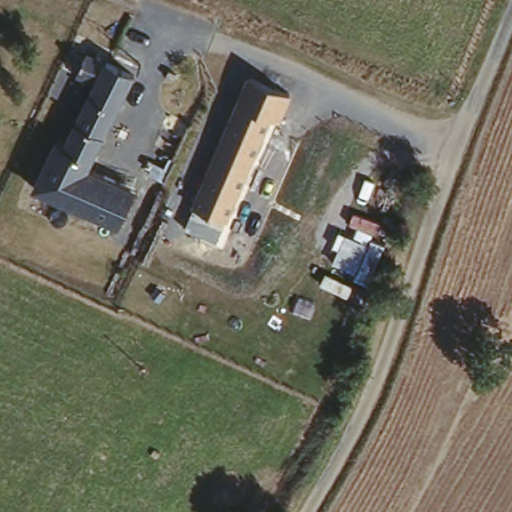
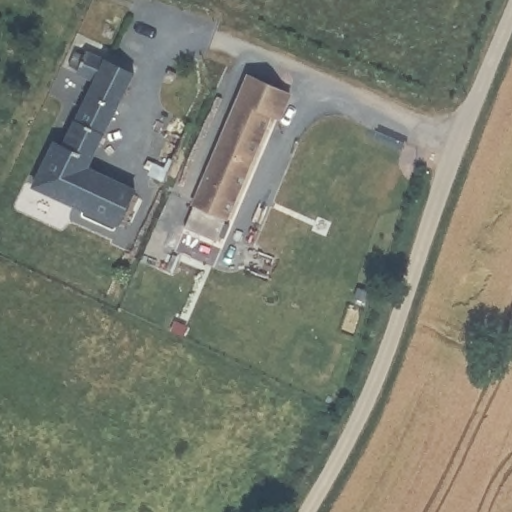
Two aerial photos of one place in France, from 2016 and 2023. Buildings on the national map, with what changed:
unchanged [(94,157),(67,144),(101,76),(81,66),(82,64),(72,58),(77,46),(87,51),(90,46),(111,58),(138,71),(94,157)]
unchanged [(282,85),(231,219),(195,206),(246,70),(282,85)]
unchanged [(91,163),(139,186),(120,220),(39,180),(59,140),(67,144),(94,157),(91,163)]

